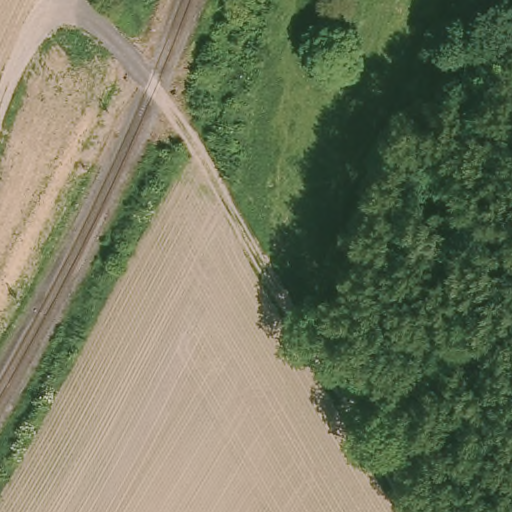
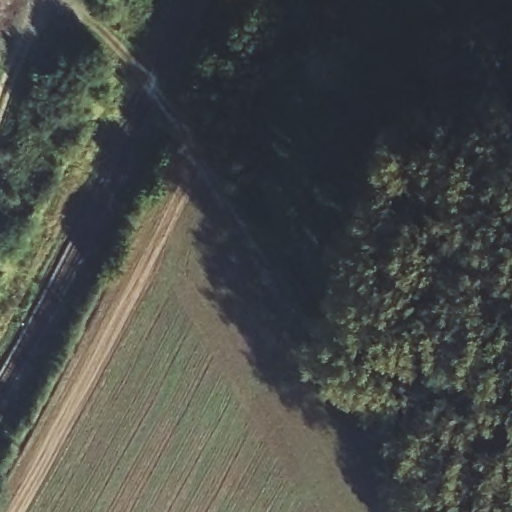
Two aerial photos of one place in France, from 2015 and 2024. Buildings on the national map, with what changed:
unchanged [(263,54),(242,48),(246,30),(270,37),(263,54)]

